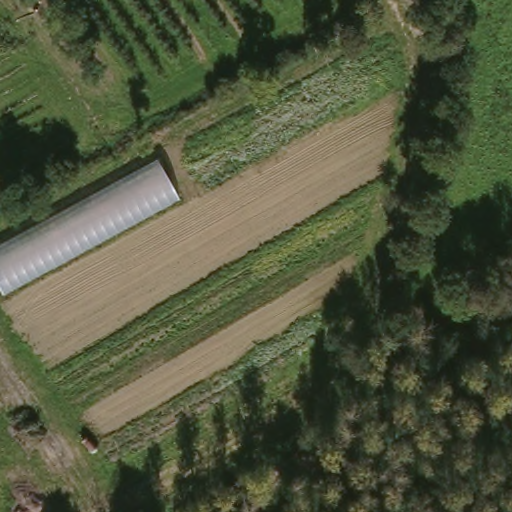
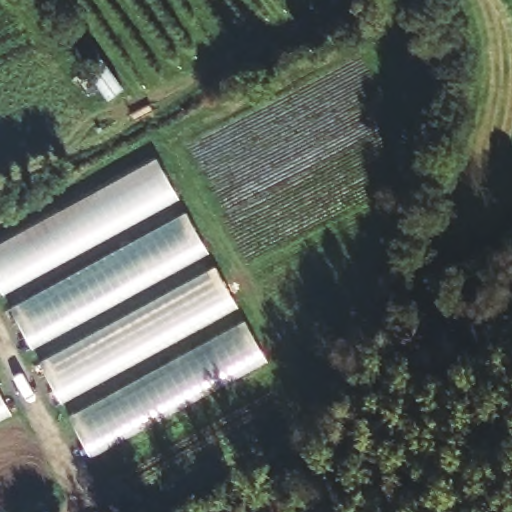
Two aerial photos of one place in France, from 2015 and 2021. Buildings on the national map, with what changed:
unchanged [(180,199),(4,294),(0,288),(0,243),(158,157),(180,199)]
new [(189,220),(206,248),(30,342),(13,311),(189,220)]
new [(219,272),(235,302),(59,397),(43,368),(219,272)]
new [(249,327),(264,353),(89,450),(73,422),(249,327)]
new [(0,412),(0,392),(9,407),(0,412)]

